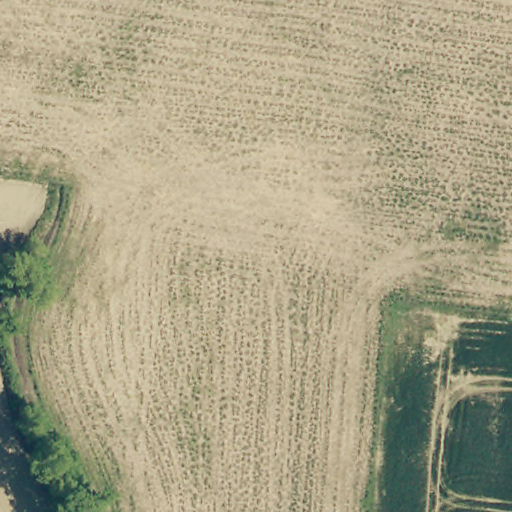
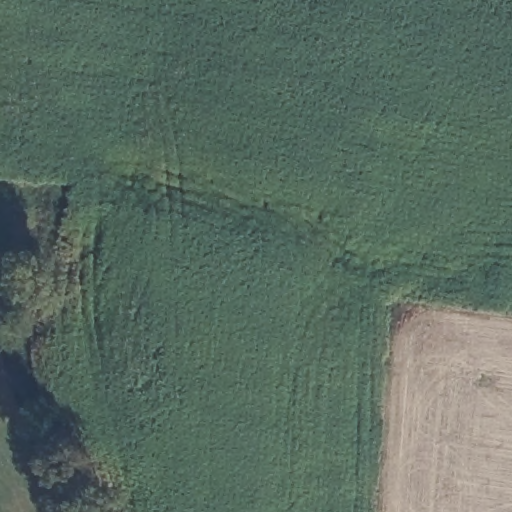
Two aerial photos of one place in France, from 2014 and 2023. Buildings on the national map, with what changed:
[]

